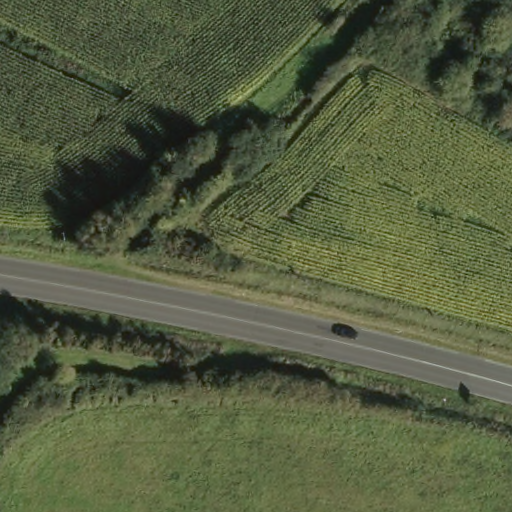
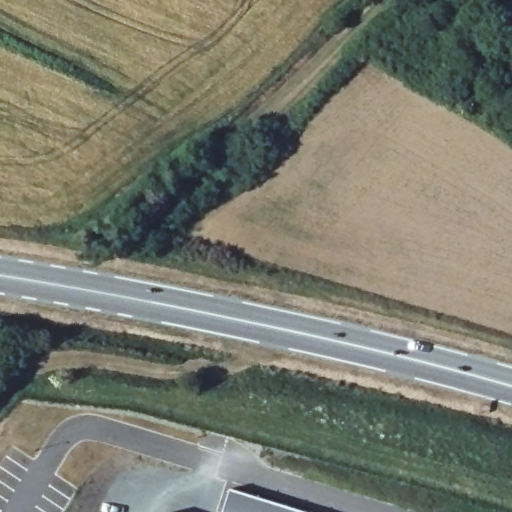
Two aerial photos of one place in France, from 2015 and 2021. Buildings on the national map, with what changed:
new [(223,512),(230,490),(304,512),(223,512)]

